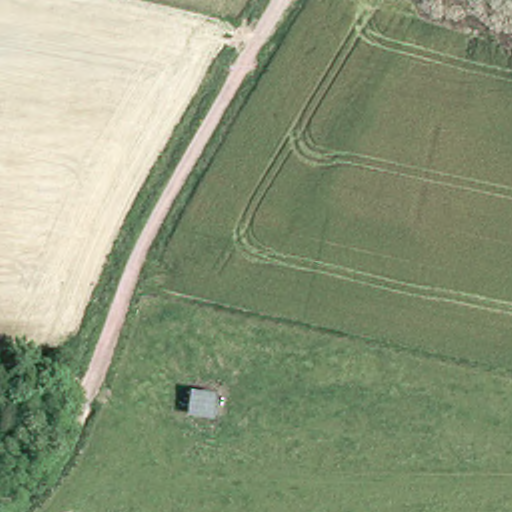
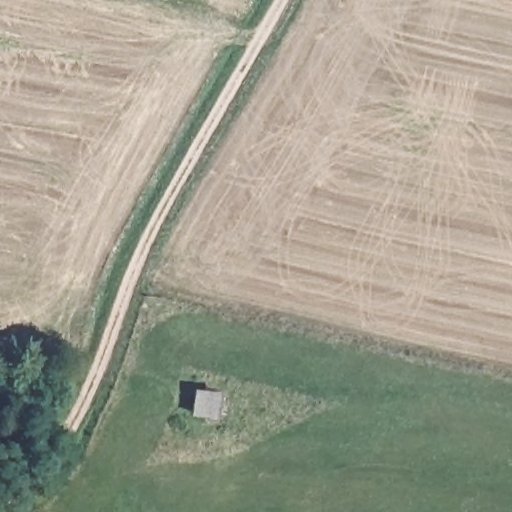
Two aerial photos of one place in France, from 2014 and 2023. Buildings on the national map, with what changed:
unchanged [(197,411),(198,391),(222,391),(221,412),(197,411)]

